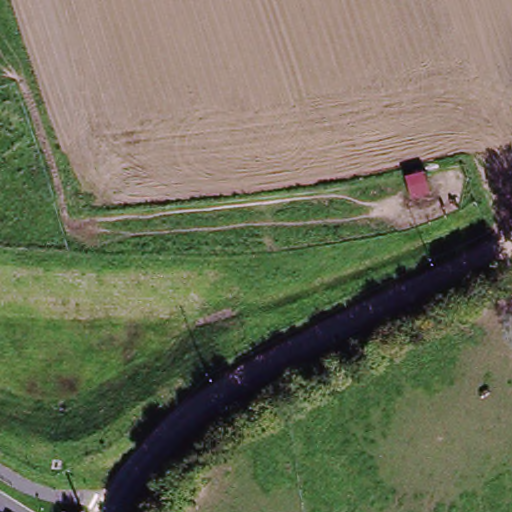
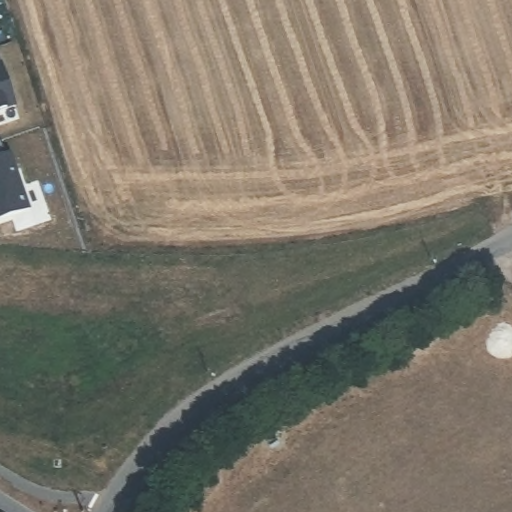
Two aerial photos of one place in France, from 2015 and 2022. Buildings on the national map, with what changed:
new [(0,68),(5,83),(13,107),(0,112),(0,68)]
new [(9,156),(28,212),(0,222),(0,143),(5,157),(9,156)]

